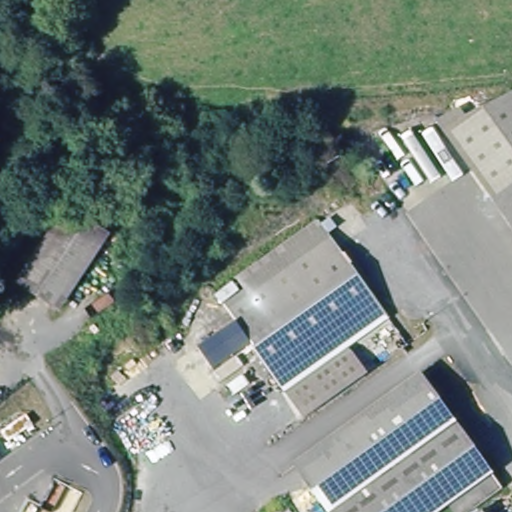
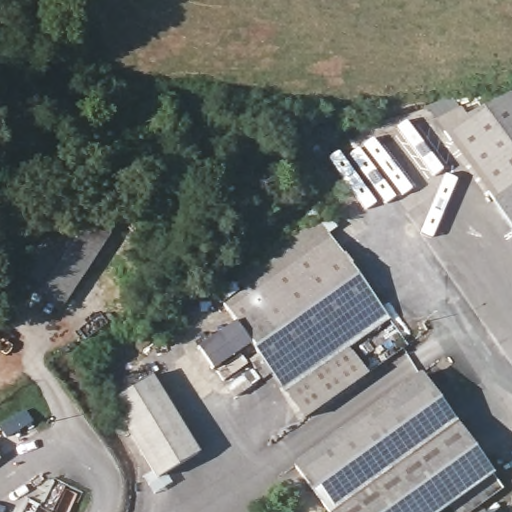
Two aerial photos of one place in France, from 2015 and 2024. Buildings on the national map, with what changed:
unchanged [(512,97),(512,190),(490,205),(438,136),(479,109),(512,97)]
unchanged [(490,205),(512,190),(512,234),(490,205)]
unchanged [(62,209),(114,235),(62,313),(14,281),(62,209)]
unchanged [(316,225),(394,319),(366,345),(377,366),(303,412),(255,347),(236,322),(215,295),(316,225)]
unchanged [(215,370),(200,349),(236,322),(255,347),(215,370)]
new [(108,402),(152,375),(200,452),(155,480),(108,402)]
unchanged [(418,378),(503,491),(478,512),(450,512),(450,511),(448,512),(333,512),(300,467),(418,378)]

